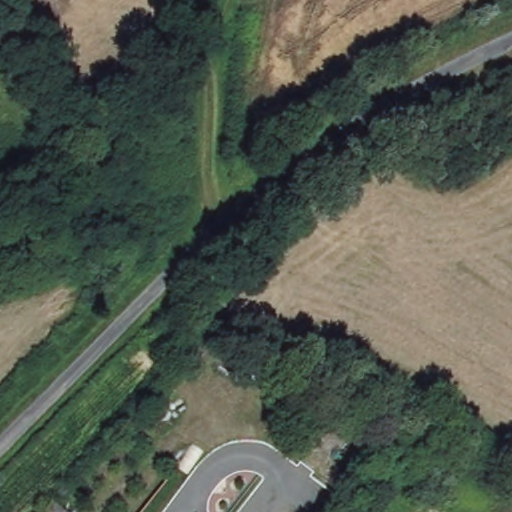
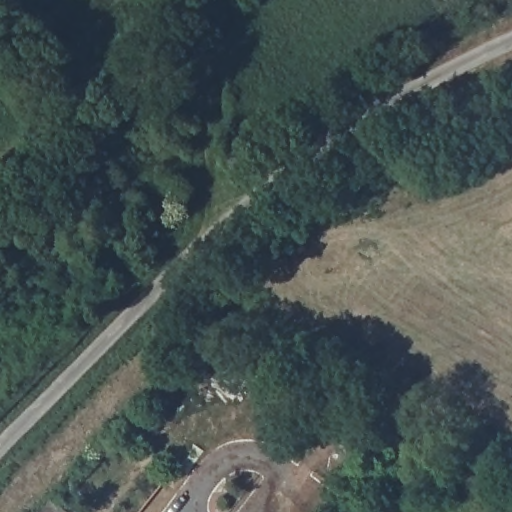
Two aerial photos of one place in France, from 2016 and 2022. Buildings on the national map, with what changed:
unchanged [(72,512),(43,512),(52,498),(72,512)]

